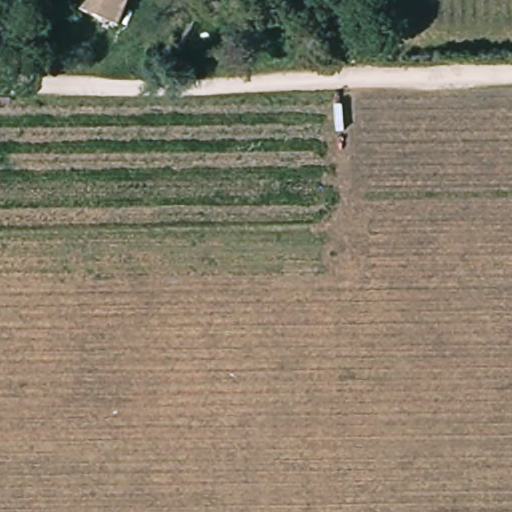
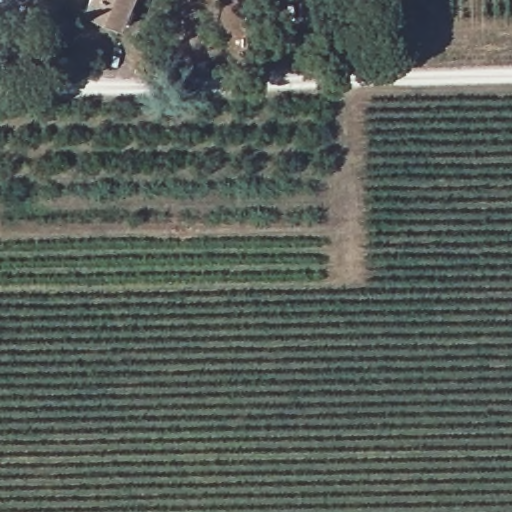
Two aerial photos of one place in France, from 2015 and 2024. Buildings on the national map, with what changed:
unchanged [(128,0),(118,24),(85,10),(89,0),(128,0)]

